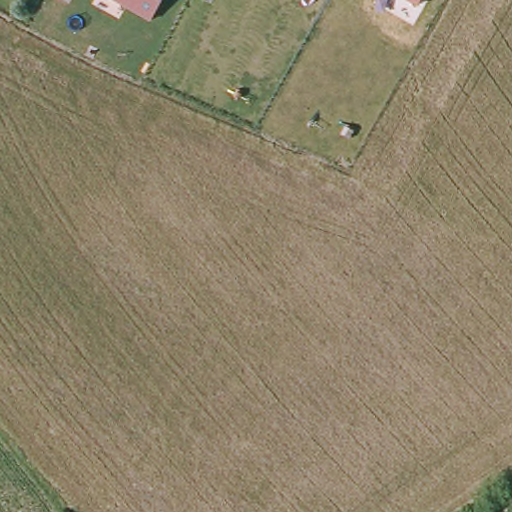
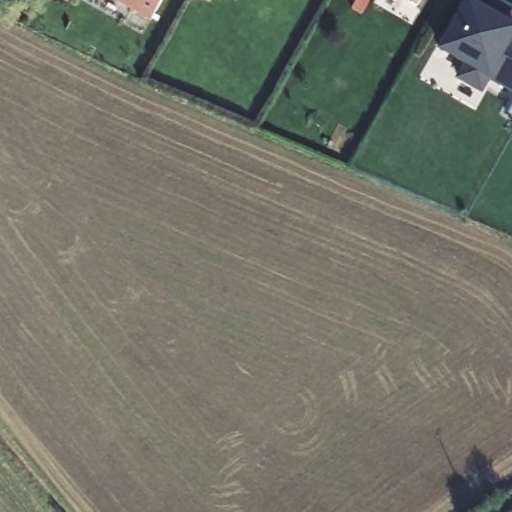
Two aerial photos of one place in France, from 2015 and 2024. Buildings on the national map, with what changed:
unchanged [(130,0),(153,0),(148,9),(130,0)]
unchanged [(419,7),(405,0),(422,0),(419,7)]
new [(490,81),(482,93),(457,79),(465,62),(440,48),(465,0),(475,0),(487,6),(490,0),(502,0),(512,5),(512,92),(490,81)]

